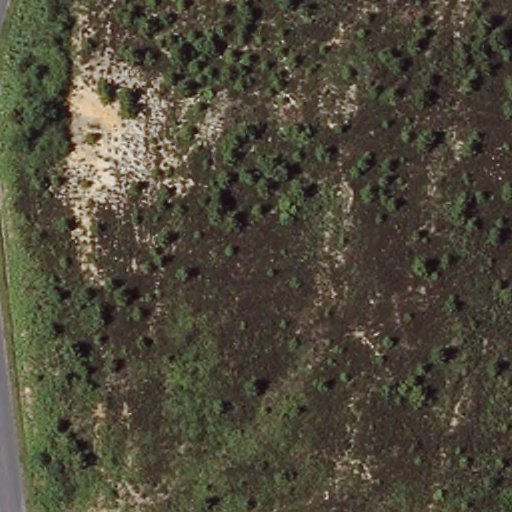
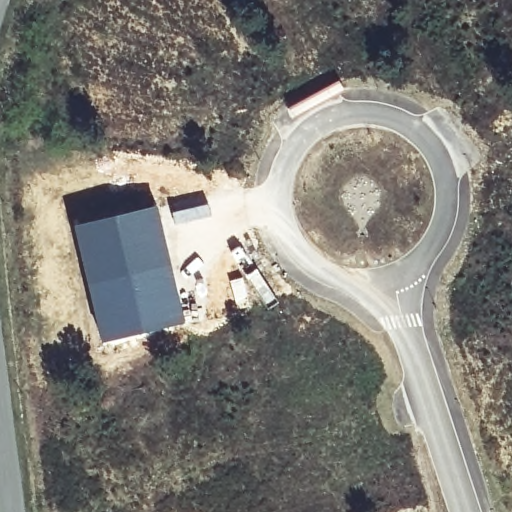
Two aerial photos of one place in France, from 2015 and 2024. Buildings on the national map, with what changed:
new [(156,203),(185,322),(101,341),(74,222),(156,203)]

